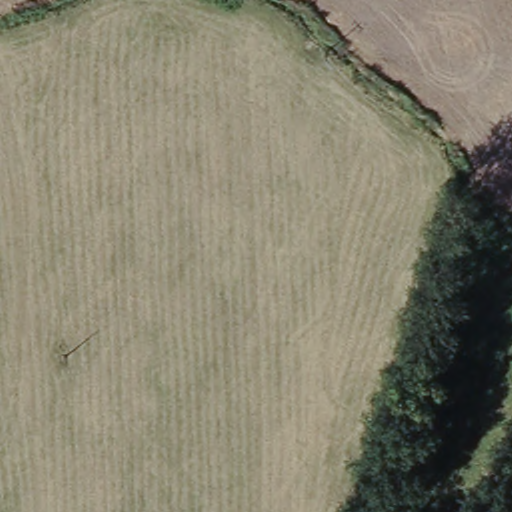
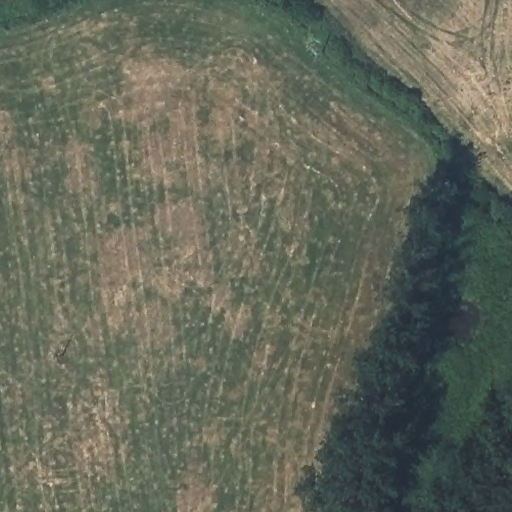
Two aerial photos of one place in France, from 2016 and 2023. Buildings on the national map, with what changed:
[]

